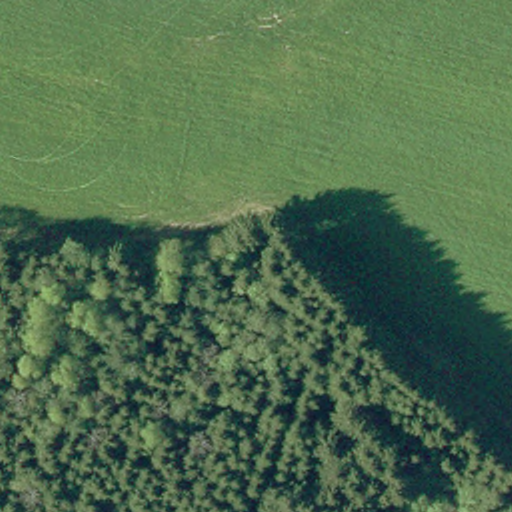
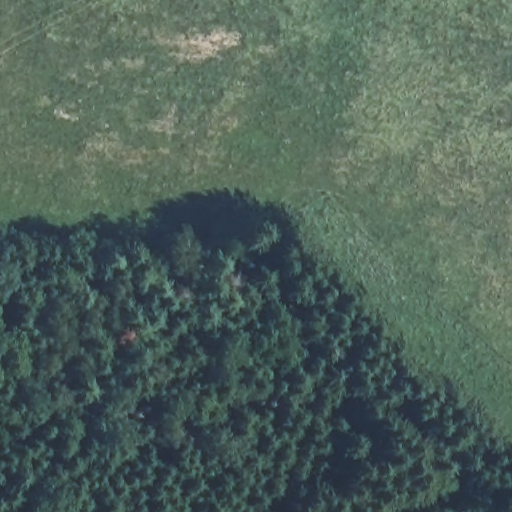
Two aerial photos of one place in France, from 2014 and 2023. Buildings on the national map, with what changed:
[]

